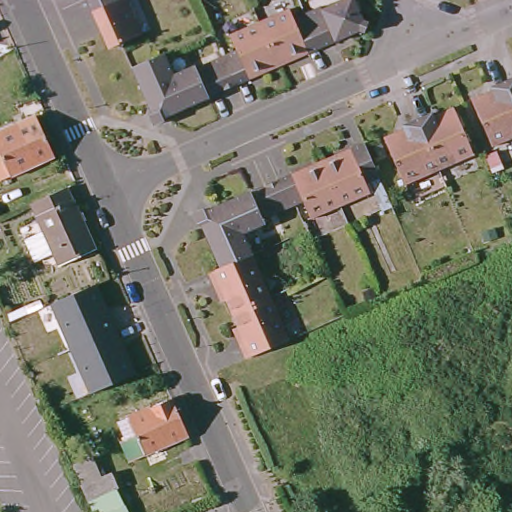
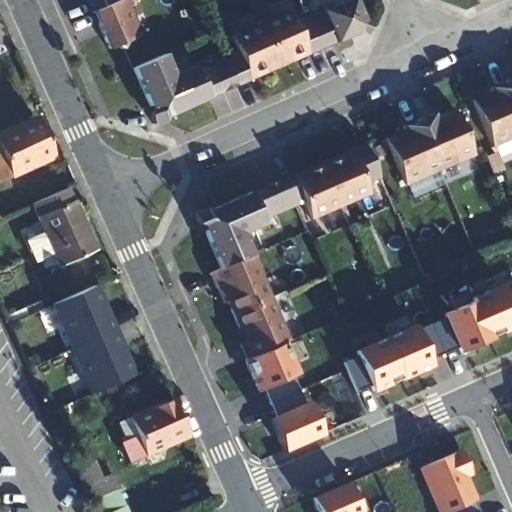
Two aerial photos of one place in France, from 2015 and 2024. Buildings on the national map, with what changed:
unchanged [(118,38),(116,43),(110,41),(103,45),(83,0),(121,0),(135,30),(118,38)]
unchanged [(364,32),(360,30),(308,53),(306,50),(248,74),(250,79),(170,114),(170,112),(166,114),(166,117),(165,120),(162,122),(160,123),(158,124),(156,124),(154,123),(152,121),(150,120),(150,116),(150,114),(150,112),(151,110),(152,110),(150,105),(148,105),(132,69),(162,55),(173,75),(194,66),(195,68),(237,50),(231,35),(290,9),(295,18),(320,7),(322,10),(342,0),(354,0),(362,19),(368,24),(364,32)]
unchanged [(512,78),(512,135),(491,144),(472,100),(491,91),(490,86),(505,80),(512,78)]
unchanged [(467,148),(398,177),(380,132),(398,125),(397,120),(426,108),(428,111),(448,102),(467,148)]
unchanged [(54,156),(0,181),(0,131),(35,115),(54,156)]
unchanged [(231,322),(220,295),(215,297),(209,282),(203,267),(215,263),(199,224),(200,224),(199,221),(197,220),(194,220),(192,218),(191,216),(190,215),(190,212),(190,209),(191,206),(193,205),(196,204),(199,204),(201,205),(203,205),(208,204),(208,202),(287,167),(288,171),(345,148),(343,144),(358,137),(382,190),(372,195),(369,186),(362,189),(361,187),(305,212),(298,196),(258,214),(259,217),(238,227),(285,334),(240,352),(239,353),(233,339),(227,324),(231,322)]
unchanged [(25,230),(45,221),(32,194),(67,178),(95,240),(60,255),(54,242),(35,251),(25,230)]
new [(490,338),(459,351),(457,345),(429,358),(431,363),(372,389),(370,383),(355,390),(342,361),(356,355),(355,350),(414,323),(415,327),(444,315),(443,313),(472,300),(470,296),(501,283),(505,290),(512,287),(512,325),(488,335),(490,338)]
unchanged [(96,285),(133,375),(89,393),(51,302),(96,285)]
new [(297,372),(292,374),(305,402),(308,400),(321,432),(283,448),(270,417),(275,415),(262,387),(257,389),(244,358),(283,341),(297,372)]
unchanged [(146,453),(145,456),(130,462),(120,441),(126,439),(118,421),(172,397),(189,435),(146,453)]
new [(443,512),(440,512),(420,465),(460,448),(470,472),(463,475),(479,512),(444,512),(444,511),(443,512)]
unchanged [(72,465),(91,456),(101,477),(111,472),(118,487),(116,488),(87,501),(72,465)]
new [(346,481),(360,512),(316,512),(310,497),(346,481)]
unchanged [(116,488),(125,505),(128,512),(93,512),(87,501),(116,488)]

